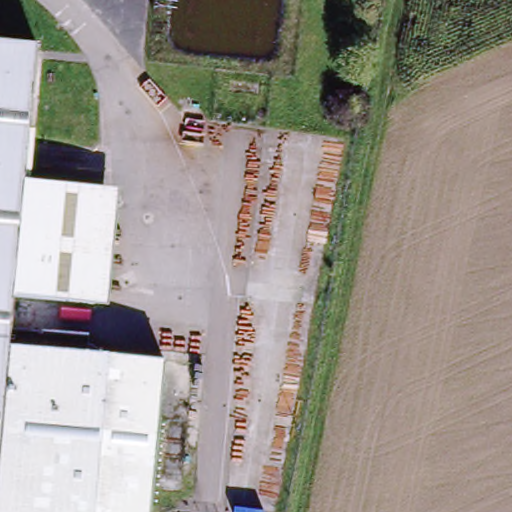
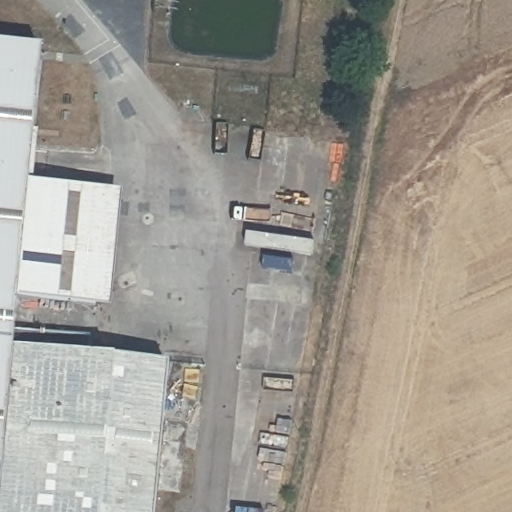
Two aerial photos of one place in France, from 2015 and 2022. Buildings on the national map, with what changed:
unchanged [(39,41),(27,180),(17,295),(15,329),(13,348),(87,353),(91,354),(170,360),(157,512),(0,512),(0,38),(39,41)]
unchanged [(27,180),(108,186),(97,303),(17,295),(27,180)]
unchanged [(87,353),(13,348),(15,329),(93,335),(91,354),(87,353)]

